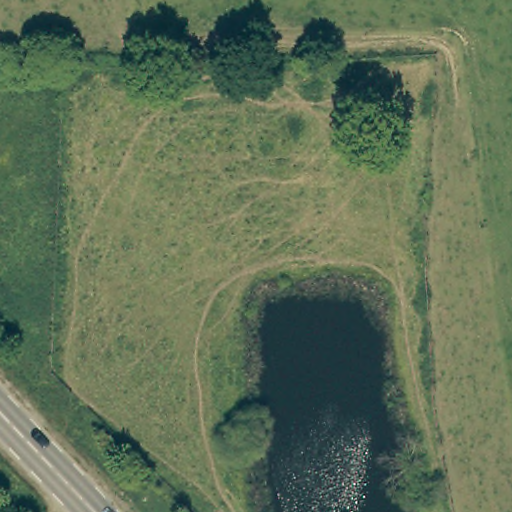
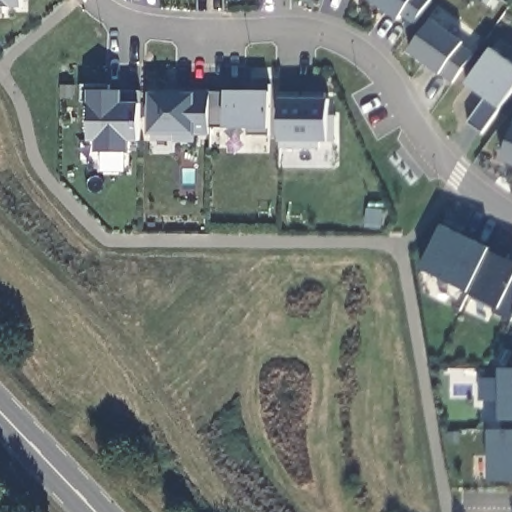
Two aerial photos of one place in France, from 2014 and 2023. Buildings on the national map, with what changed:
new [(6,9),(6,15),(0,14),(0,0),(25,0),(25,9),(6,9)]
new [(417,25),(405,16),(401,21),(373,0),(432,0),(434,1),(417,25)]
new [(434,21),(465,44),(464,46),(476,56),(455,85),(411,53),(434,21)]
new [(494,50),(512,62),(512,97),(485,135),(470,125),(488,99),(469,86),(472,81),(494,50)]
new [(212,96),(213,94),(252,94),(252,86),(273,86),(272,138),(250,137),(250,130),(212,129),(212,96)]
new [(83,87),(112,87),(112,93),(142,93),(142,143),(132,143),(132,155),(100,155),(100,143),(92,143),(92,105),(83,104),(83,87)]
new [(283,94),(300,94),(300,101),(306,101),(306,94),(328,95),(327,101),(331,101),(331,117),(338,118),(338,144),(322,143),(322,150),(282,150),(283,94)]
new [(153,95),(212,96),(212,129),(212,141),(202,141),(202,148),(177,148),(177,156),(152,156),(153,95)]
new [(512,143),(512,165),(505,163),(512,143)]
new [(447,224),(466,233),(462,241),(476,247),(478,243),(494,251),(472,295),(424,272),(447,224)]
new [(494,251),(495,249),(512,257),(512,258),(510,262),(512,262),(512,322),(496,315),(499,309),(472,296),(472,295),(494,251)]
new [(501,402),(478,403),(478,380),(501,381),(501,369),(512,369),(512,420),(500,420),(501,402)]
new [(512,432),(512,483),(493,483),(493,432),(512,432)]

